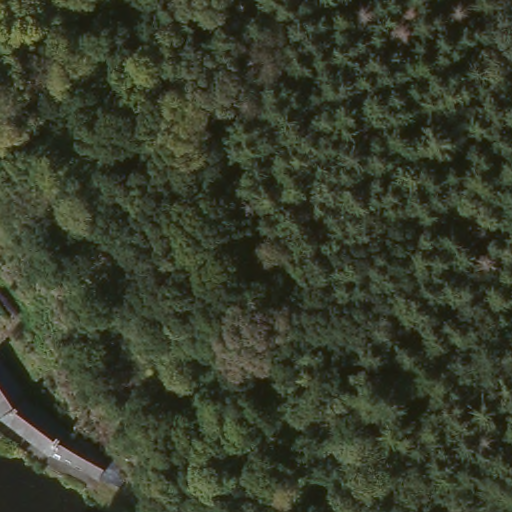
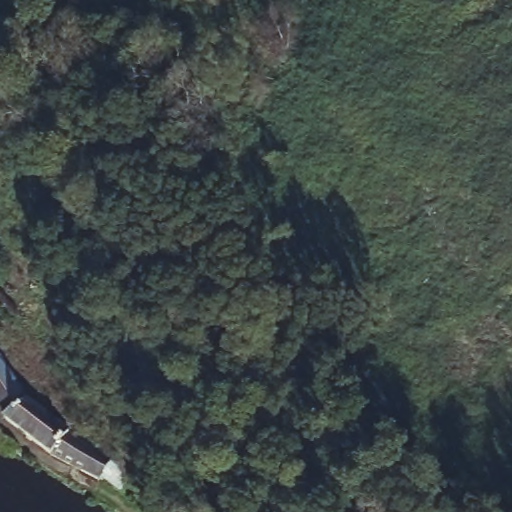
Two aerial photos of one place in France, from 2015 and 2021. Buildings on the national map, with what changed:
unchanged [(0,365),(11,385),(37,416),(106,460),(96,482),(28,445),(2,425),(0,421),(0,365)]

